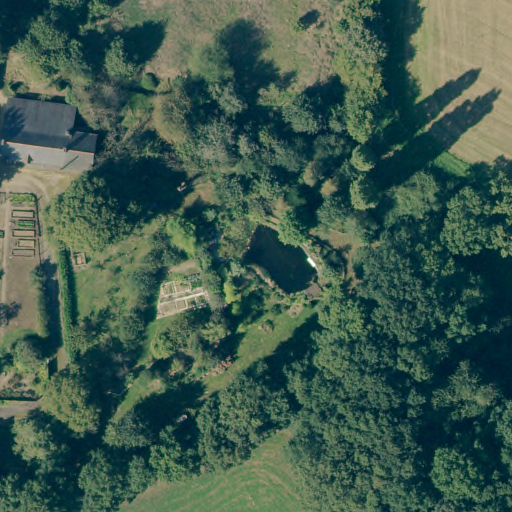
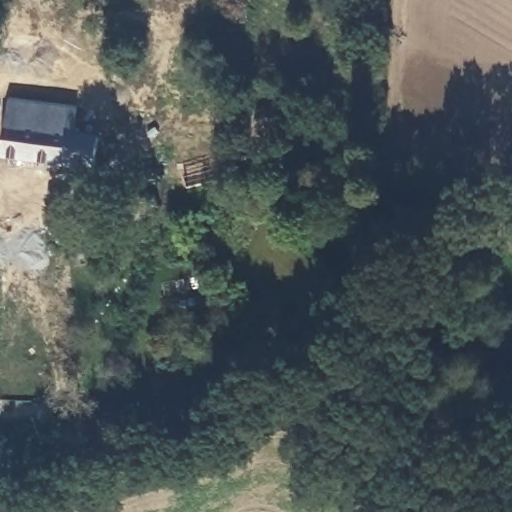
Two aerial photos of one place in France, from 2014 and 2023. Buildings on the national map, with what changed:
unchanged [(0,63),(0,75),(0,44),(5,44),(5,63),(0,63)]
unchanged [(100,136),(107,137),(102,174),(90,172),(11,161),(19,103),(83,111),(83,128),(96,130),(100,130),(100,136)]
unchanged [(133,220),(128,204),(147,200),(177,192),(181,207),(133,220)]
unchanged [(77,482),(81,426),(97,427),(94,481),(77,482)]
unchanged [(0,485),(0,445),(1,445),(1,485),(0,485)]

